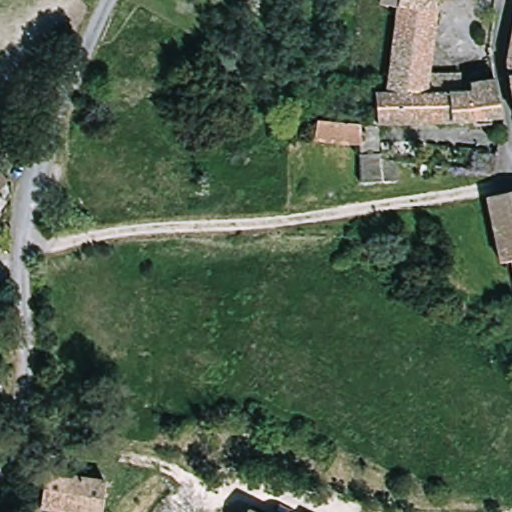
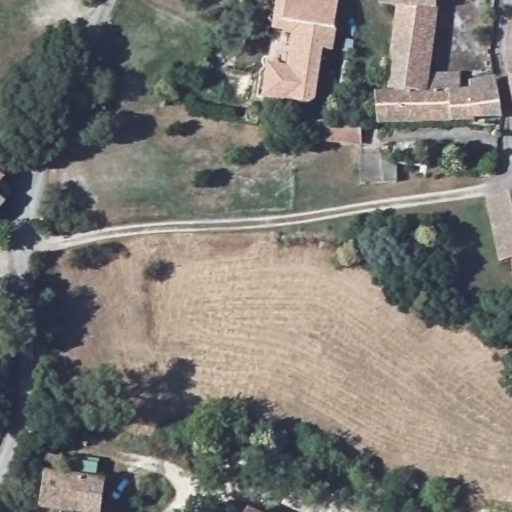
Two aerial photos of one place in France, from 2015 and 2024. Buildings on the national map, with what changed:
new [(333,53),(323,51),(316,102),(310,106),(262,100),(267,63),(287,67),(293,33),(272,30),(277,0),(339,0),(334,29),(333,53)]
unchanged [(424,74),(458,74),(458,83),(456,91),(387,93),(387,89),(398,8),(381,6),(381,0),(434,0),(434,8),(424,74)]
unchanged [(512,51),(512,78),(510,64),(512,51)]
unchanged [(499,118),(469,119),(469,121),(373,125),(370,94),(387,93),(456,91),(458,83),(492,79),(499,118)]
unchanged [(362,126),(363,143),(315,139),(318,122),(362,126)]
unchanged [(360,156),(381,155),(381,162),(397,162),(397,183),(361,184),(360,156)]
unchanged [(0,199),(0,185),(4,194),(0,199)]
unchanged [(499,265),(489,199),(512,194),(512,271),(510,262),(499,265)]
unchanged [(43,471),(105,480),(100,512),(61,512),(38,509),(43,471)]
unchanged [(256,512),(247,512),(249,508),(256,512)]
unchanged [(306,511),(307,512),(306,512),(306,511)]

